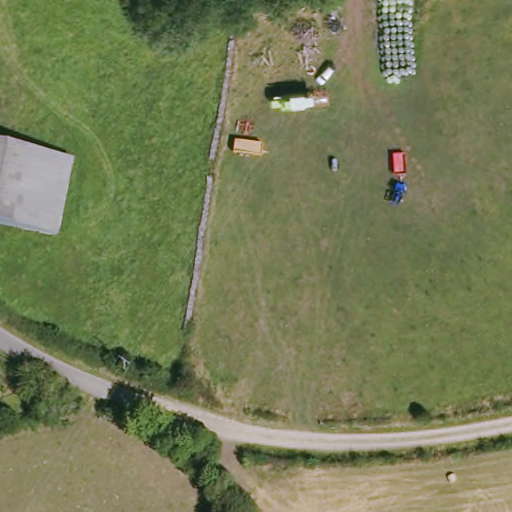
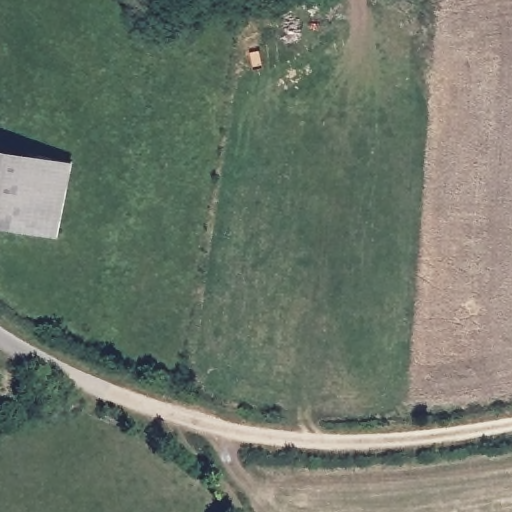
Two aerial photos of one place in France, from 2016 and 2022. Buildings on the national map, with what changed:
unchanged [(54,240),(0,229),(0,153),(67,166),(54,240)]

